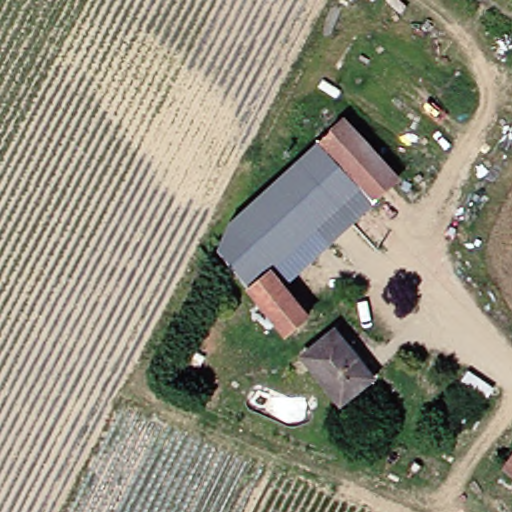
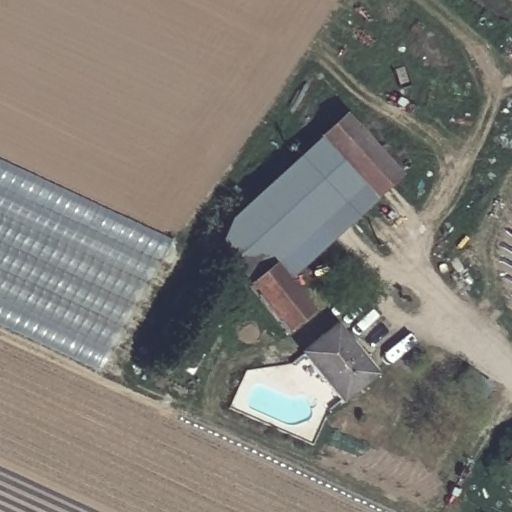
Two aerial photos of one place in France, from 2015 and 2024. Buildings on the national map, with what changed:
unchanged [(375,198),(318,138),(348,113),(403,174),(375,198)]
new [(325,144),(375,198),(294,277),(278,259),(248,285),(217,250),(230,221),(318,138),(325,144)]
new [(172,239),(99,374),(0,329),(0,159),(172,239)]
unchanged [(248,285),(278,259),(318,304),(288,330),(248,285)]
unchanged [(303,352),(335,322),(377,368),(344,398),(303,352)]
unchanged [(512,459),(512,472),(507,469),(512,459)]

